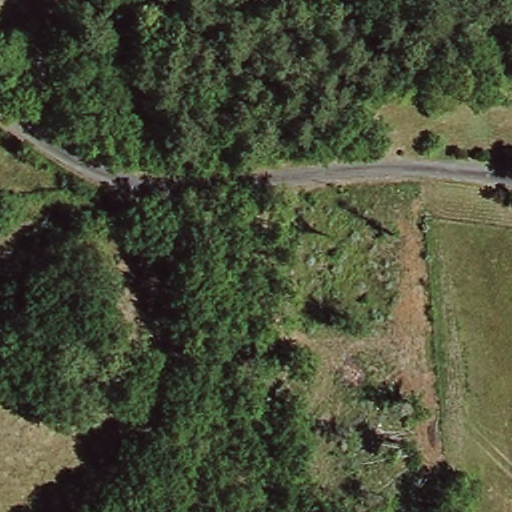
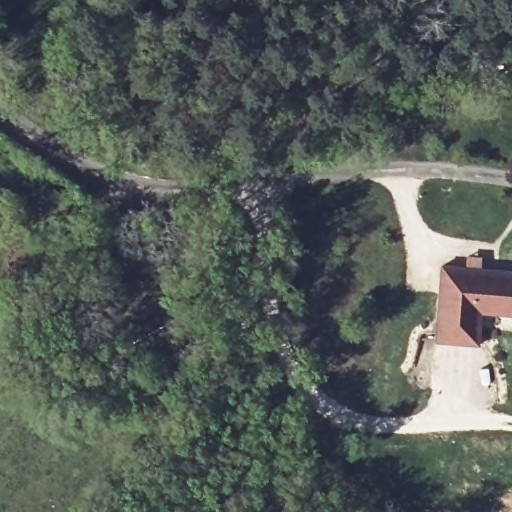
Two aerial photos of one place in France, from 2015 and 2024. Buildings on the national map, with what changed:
new [(512,268),(512,314),(484,312),(481,345),(436,341),(442,263),(512,268)]

